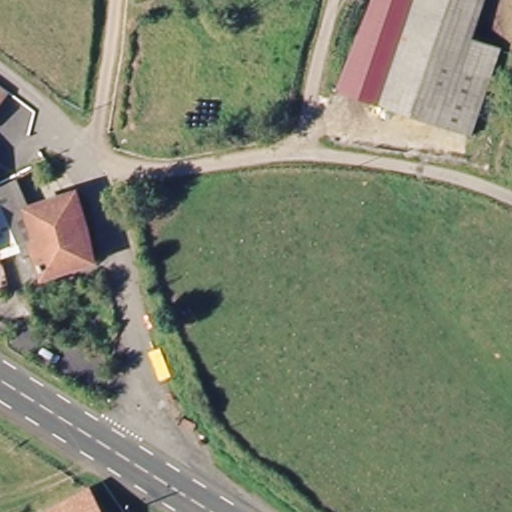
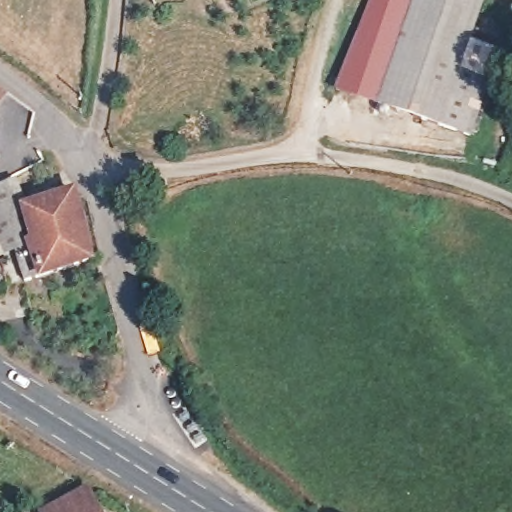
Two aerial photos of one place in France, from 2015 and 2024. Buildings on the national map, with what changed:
unchanged [(375,107),(332,95),(367,0),(407,0),(375,107)]
unchanged [(472,40),(499,47),(501,48),(499,57),(475,136),(375,107),(407,0),(484,0),(472,40)]
unchanged [(0,194),(21,184),(30,209),(42,238),(34,241),(36,247),(25,250),(3,259),(0,250),(0,194)]
unchanged [(36,247),(34,241),(42,238),(30,209),(79,193),(91,222),(102,260),(37,281),(25,250),(36,247)]
unchanged [(119,399),(96,392),(103,374),(124,382),(119,399)]
unchanged [(99,512),(51,512),(88,493),(99,512)]

